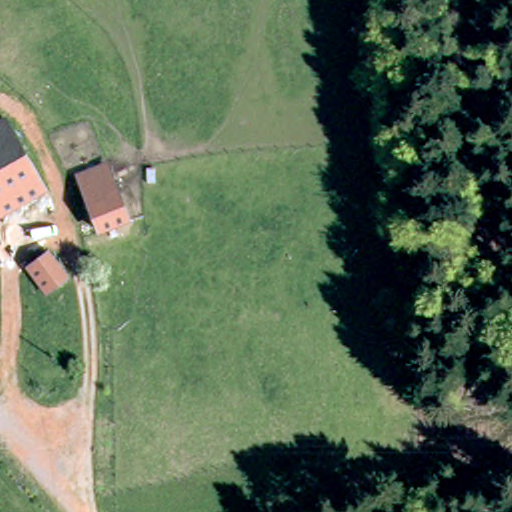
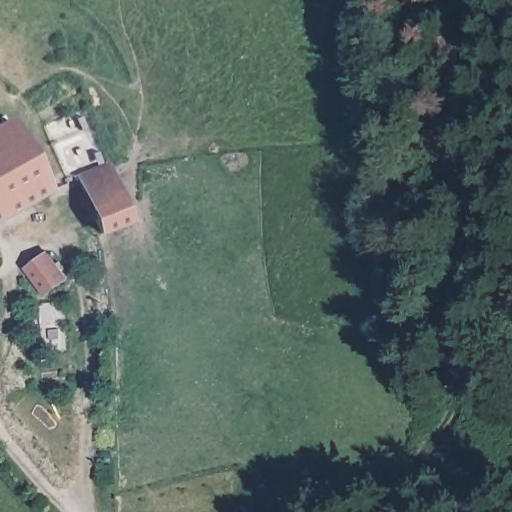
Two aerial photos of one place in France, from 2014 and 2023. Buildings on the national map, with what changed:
unchanged [(49,185),(0,211),(0,121),(10,116),(49,185)]
unchanged [(87,203),(76,177),(106,166),(106,167),(116,192),(127,223),(97,232),(87,203)]
unchanged [(51,299),(32,276),(52,260),(69,284),(51,299)]

